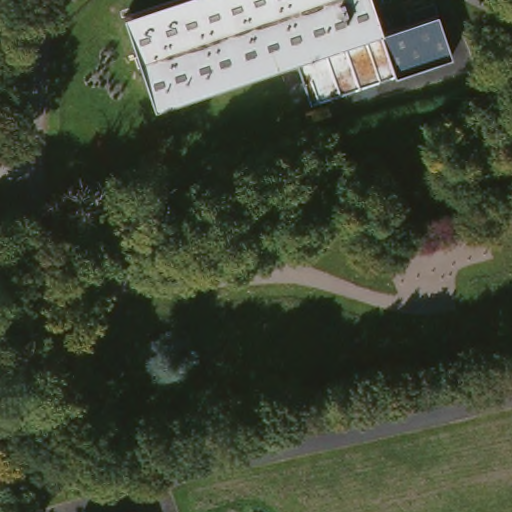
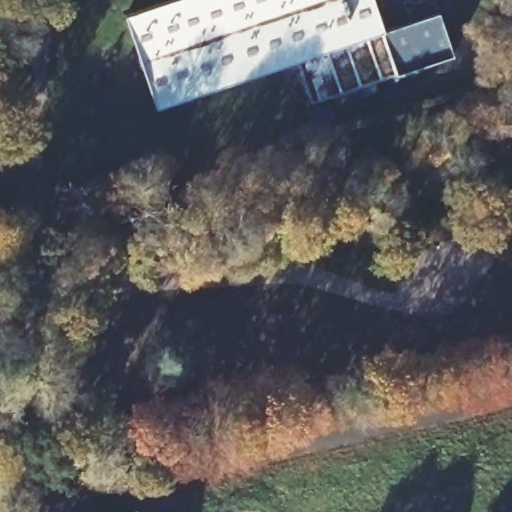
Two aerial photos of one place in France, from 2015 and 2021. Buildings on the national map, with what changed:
unchanged [(381,0),(389,25),(390,36),(401,71),(318,100),(303,60),(167,106),(134,14),(173,0),(381,0)]
unchanged [(436,11),(452,54),(401,71),(390,36),(389,25),(436,11)]
unchanged [(138,512),(130,512),(137,510),(138,512)]

